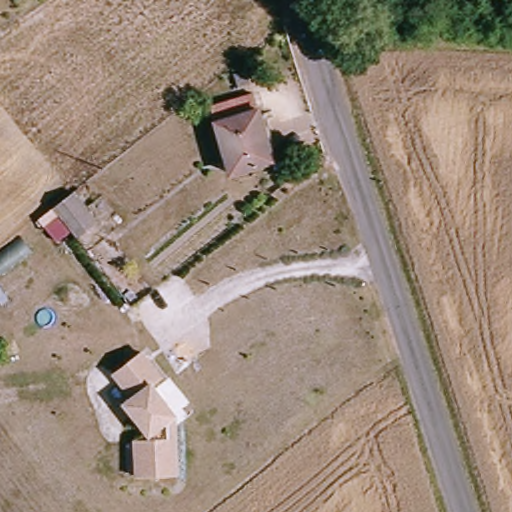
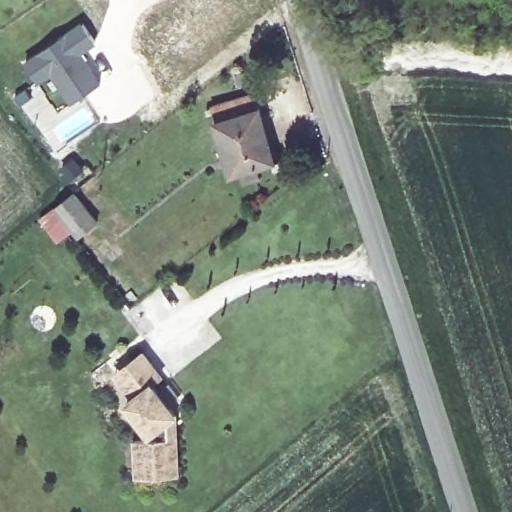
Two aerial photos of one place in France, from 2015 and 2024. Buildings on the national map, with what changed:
new [(98,44),(83,55),(103,84),(74,105),(53,75),(36,85),(23,62),(83,21),(98,44)]
unchanged [(219,112),(260,101),(278,171),(237,182),(219,112)]
unchanged [(57,210),(76,195),(99,222),(79,238),(57,210)]
unchanged [(181,475),(142,475),(140,439),(153,438),(153,432),(131,402),(139,397),(126,380),(120,372),(137,360),(146,352),(166,377),(156,383),(179,413),(179,428),(181,475)]

